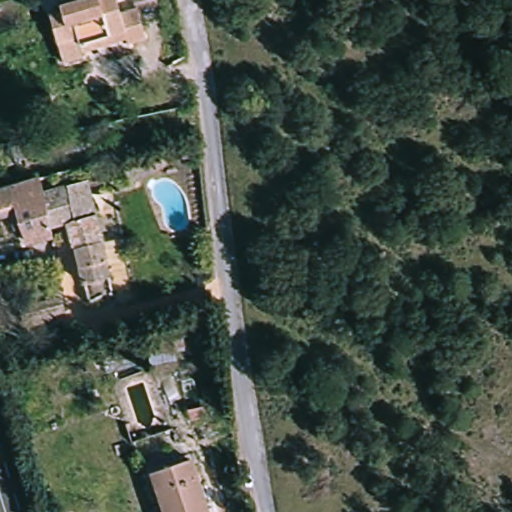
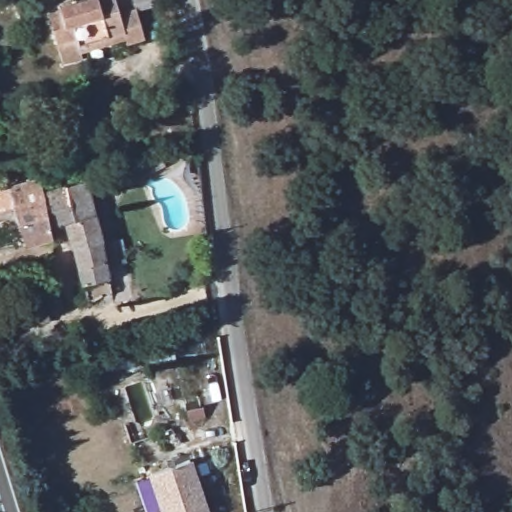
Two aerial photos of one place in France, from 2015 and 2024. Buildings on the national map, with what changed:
unchanged [(43,20),(61,16),(57,2),(63,0),(112,0),(114,9),(133,4),(142,38),(125,42),(122,30),(73,43),(70,32),(48,38),(43,20)]
unchanged [(55,61),(48,38),(70,32),(73,43),(122,30),(125,42),(55,61)]
unchanged [(34,176),(37,190),(43,230),(45,236),(17,243),(7,213),(0,215),(0,187),(34,176)]
unchanged [(77,285),(72,271),(58,227),(43,230),(37,190),(82,177),(102,262),(105,278),(77,285)]
unchanged [(60,316),(20,325),(17,313),(57,304),(60,316)]
unchanged [(14,349),(0,353),(0,311),(2,310),(14,349)]
unchanged [(188,457),(209,512),(158,512),(145,475),(188,457)]

